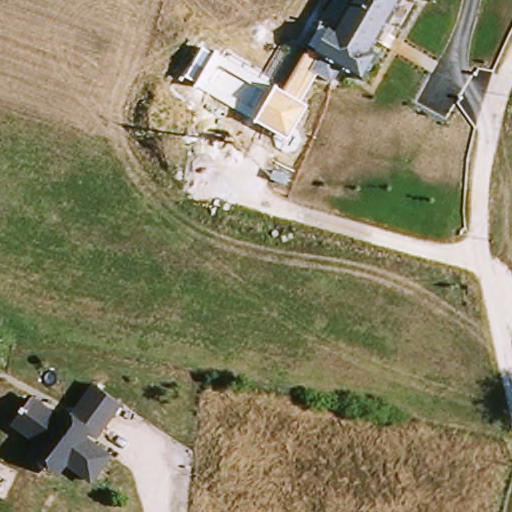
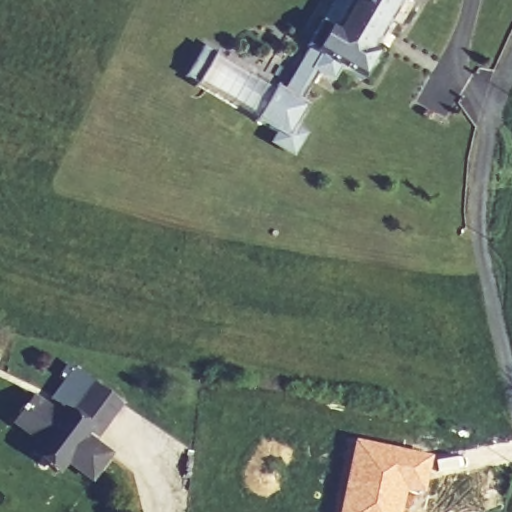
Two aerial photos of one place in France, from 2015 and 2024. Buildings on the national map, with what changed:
unchanged [(374,49),(380,53),(362,81),(317,52),(308,48),(323,20),(336,28),(351,0),(402,0),(374,49)]
unchanged [(332,82),(318,74),(302,103),(308,107),(288,141),(255,121),(275,86),(285,91),(308,48),(317,52),(340,67),(332,82)]
unchanged [(95,475),(68,456),(60,467),(35,448),(42,437),(18,419),(24,411),(22,408),(26,401),(29,403),(35,394),(62,412),(65,406),(72,411),(97,379),(124,399),(99,433),(92,427),(88,432),(113,450),(95,475)]
new [(430,456),(421,497),(407,495),(403,512),(406,512),(337,512),(352,439),(430,456)]

